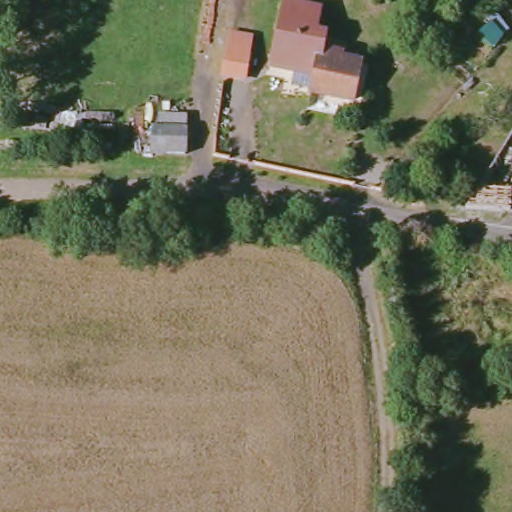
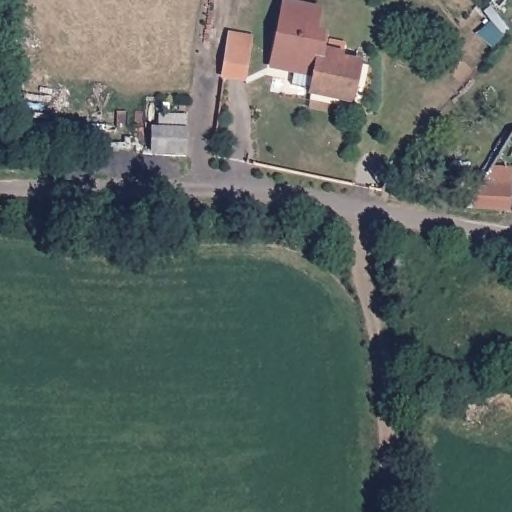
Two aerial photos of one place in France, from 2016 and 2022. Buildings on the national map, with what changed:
unchanged [(279,5),(315,12),(312,30),(300,28),(299,35),(319,39),(317,53),(338,56),(338,61),(357,65),(349,104),(308,96),(314,66),(293,63),(290,75),(267,71),(279,5)]
unchanged [(218,79),(221,62),(223,49),(224,39),(245,42),(243,52),(238,82),(218,79)]
unchanged [(148,155),(148,128),(156,128),(156,113),(185,115),(187,155),(148,155)]

